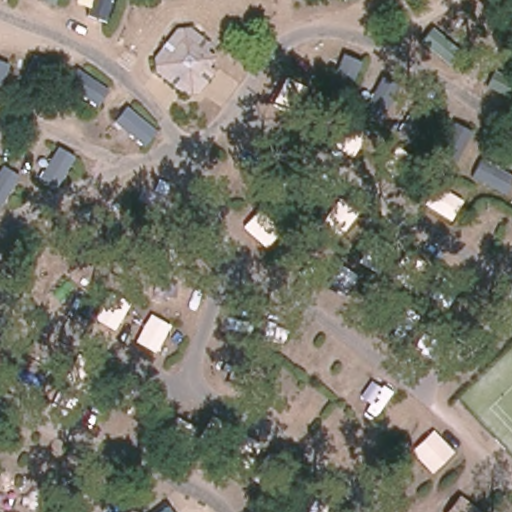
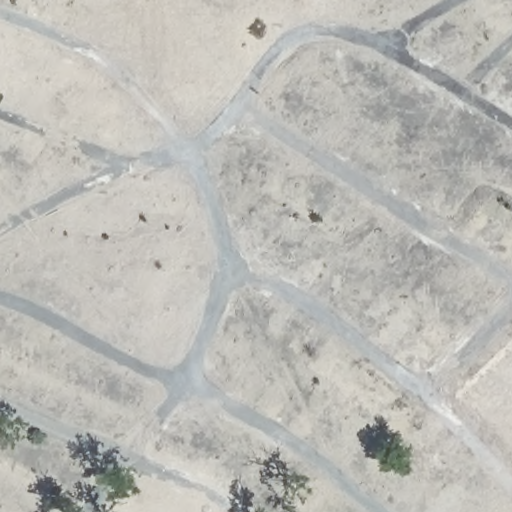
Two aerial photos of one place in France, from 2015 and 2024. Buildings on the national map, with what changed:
demolished [(190,32),(209,46),(204,52),(212,60),(206,69),(212,73),(197,91),(192,87),(187,92),(159,71),(157,61),(180,33),(190,32)]
demolished [(512,512),(506,512),(491,498),(510,483),(512,485),(512,512)]

